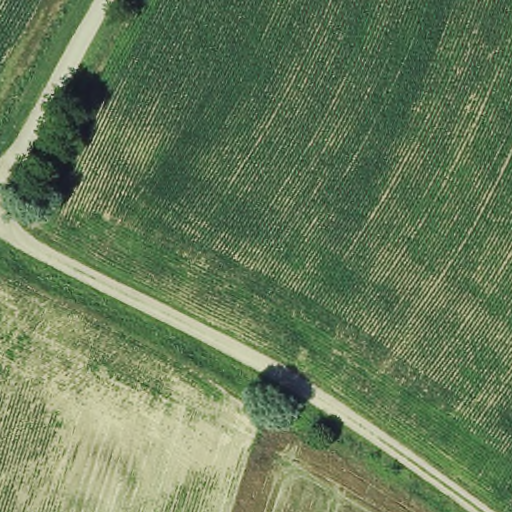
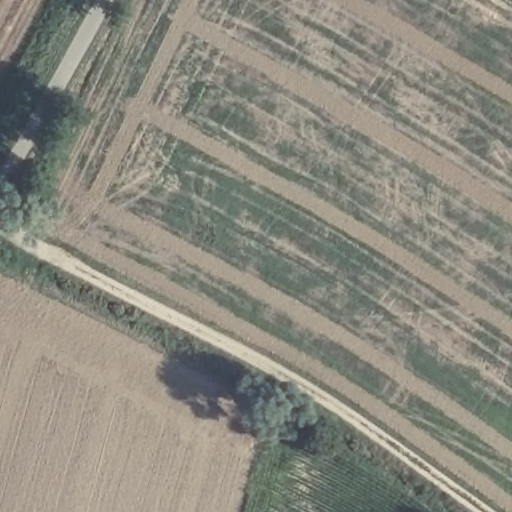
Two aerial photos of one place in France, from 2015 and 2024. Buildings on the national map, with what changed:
[]

